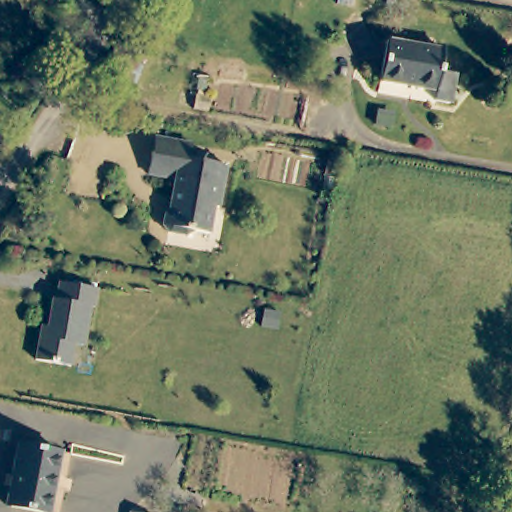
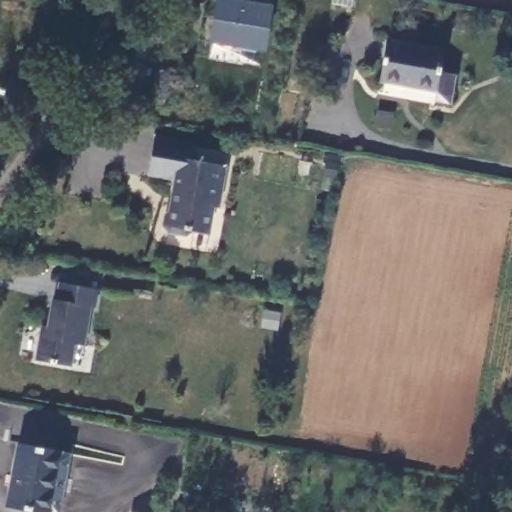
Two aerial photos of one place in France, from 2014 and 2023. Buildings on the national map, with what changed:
new [(219,0),(272,0),(271,5),(275,5),(265,52),(209,43),(219,0)]
unchanged [(438,72),(454,77),(445,107),(429,102),(429,101),(373,84),(389,36),(444,52),(438,72)]
unchanged [(0,138),(0,115),(10,122),(0,138)]
unchanged [(218,208),(212,208),(205,235),(189,232),(183,236),(166,232),(160,225),(164,212),(172,207),(174,198),(169,197),(174,177),(147,170),(153,150),(156,135),(192,144),(189,159),(227,167),(218,208)]
unchanged [(45,334),(53,296),(57,296),(61,279),(99,287),(95,303),(92,303),(83,341),(75,341),(71,362),(35,354),(39,332),(45,334)]
unchanged [(54,512),(51,512),(0,500),(16,439),(69,451),(54,512)]
unchanged [(156,512),(152,512),(153,511),(156,512)]

